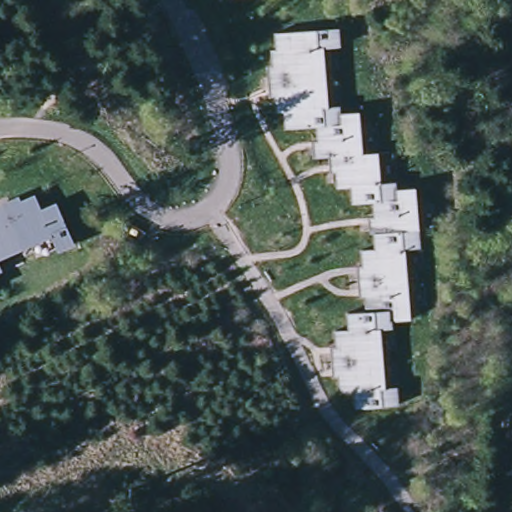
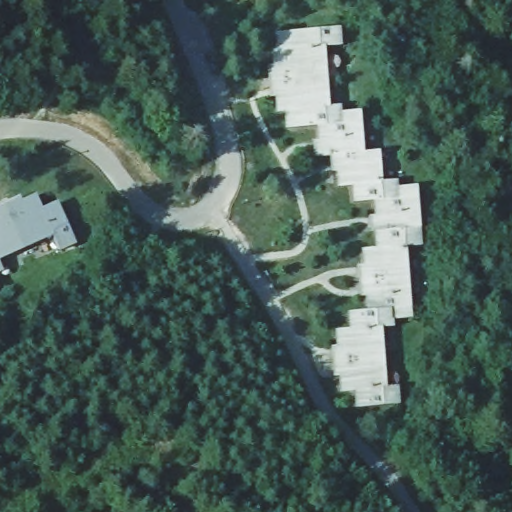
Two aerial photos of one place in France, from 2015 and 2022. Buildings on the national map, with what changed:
unchanged [(269,89),(265,89),(264,77),(271,77),(272,89),(276,88),(272,49),(277,49),(277,32),(339,28),(340,46),(320,48),(325,107),(340,106),(340,113),(341,123),(319,125),(287,128),(285,111),(277,112),(277,94),(269,95),(269,89)]
unchanged [(317,155),(305,156),(305,149),(312,148),(312,142),(320,141),(319,125),(341,123),(340,113),(360,111),(363,153),(363,154),(337,156),(321,157),(320,147),(317,148),(317,155)]
unchanged [(353,185),(339,186),(337,170),(334,170),(335,182),(327,183),(327,171),(330,170),(330,164),(337,164),(337,156),(363,154),(363,153),(379,152),(381,182),(397,181),(397,188),(397,198),(375,200),(354,202),(353,185)]
unchanged [(373,230),(362,231),(360,224),(369,223),(369,217),(376,217),(375,200),(397,198),(397,188),(416,186),(420,228),(377,231),(377,223),(372,223),(373,230)]
unchanged [(1,211),(37,195),(43,209),(59,202),(77,243),(60,250),(52,232),(0,255),(0,209),(1,211)]
unchanged [(7,196),(10,203),(0,208),(0,200),(7,196)]
unchanged [(359,289),(350,290),(350,282),(362,281),(362,289),(367,288),(365,272),(361,272),(362,279),(350,280),(349,273),(357,272),(357,266),(365,266),(363,249),(377,248),(375,231),(377,231),(420,228),(421,245),(405,247),(410,307),(411,318),(392,319),(391,309),(368,311),(367,294),(360,295),(359,289)]
unchanged [(3,270),(0,271),(0,263),(3,270)]
unchanged [(332,370),(324,370),(324,363),(335,362),(336,369),(340,369),(339,353),(335,353),(335,360),(324,361),(323,354),(331,353),(330,347),(338,347),(337,330),(350,329),(349,312),(368,311),(391,309),(392,319),(392,327),(377,328),(382,387),(397,386),(397,387),(399,404),(357,408),(355,391),(342,392),(340,375),(333,376),(332,370)]

